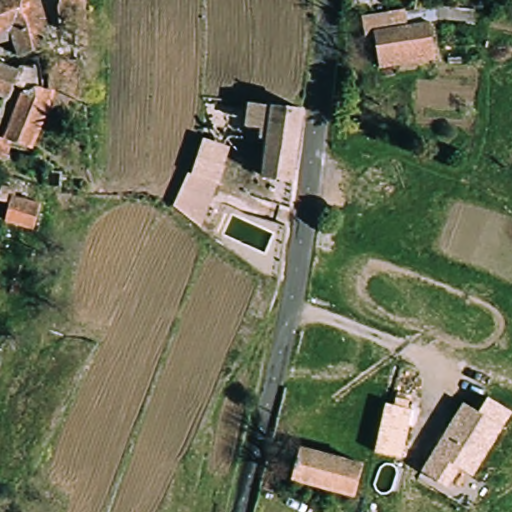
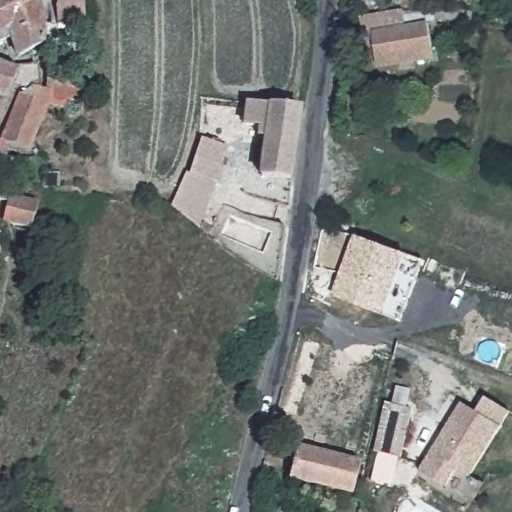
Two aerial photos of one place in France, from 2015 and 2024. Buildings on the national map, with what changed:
unchanged [(0,142),(0,126),(15,67),(27,64),(45,62),(45,50),(27,50),(10,55),(7,40),(0,42),(0,0),(28,0),(33,24),(55,19),(53,0),(92,0),(85,1),(87,48),(75,50),(77,85),(47,88),(27,151),(0,142)]
unchanged [(436,65),(376,62),(378,29),(362,29),(362,10),(370,9),(390,13),(408,13),(407,30),(437,30),(436,65)]
unchanged [(0,89),(0,69),(6,71),(0,89)]
unchanged [(262,182),(270,134),(246,129),(250,105),(300,112),(292,186),(262,182)]
unchanged [(205,137),(233,149),(202,220),(175,206),(205,137)]
unchanged [(10,214),(15,193),(48,200),(44,222),(10,214)]
new [(398,320),(385,315),(332,296),(355,235),(407,253),(420,258),(398,320)]
unchanged [(463,401),(478,410),(488,396),(512,411),(512,412),(503,426),(472,475),(460,468),(448,488),(421,471),(463,401)]
unchanged [(375,452),(385,401),(394,404),(397,398),(408,400),(407,408),(411,409),(402,458),(375,452)]
unchanged [(307,450),(365,462),(358,493),(301,481),(307,450)]

